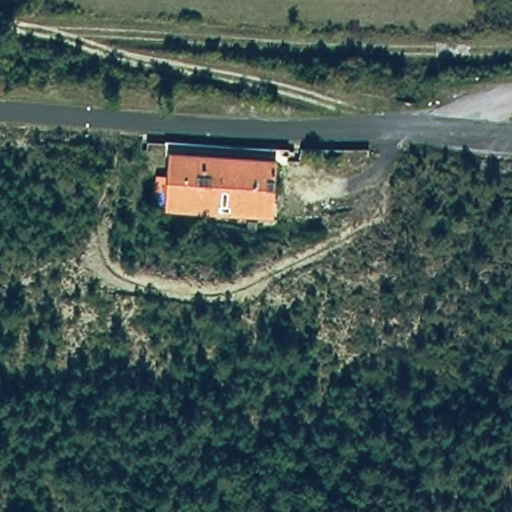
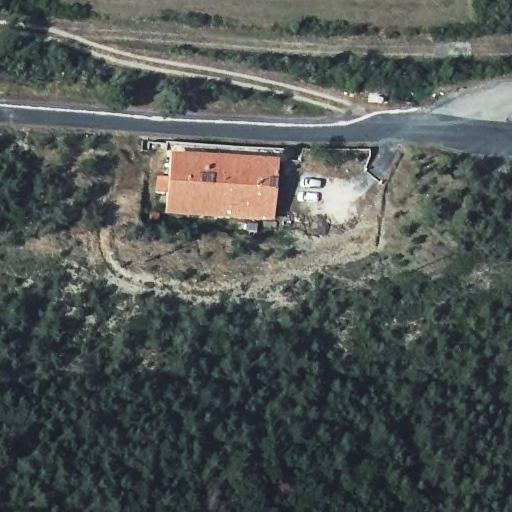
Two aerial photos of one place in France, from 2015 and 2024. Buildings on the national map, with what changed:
unchanged [(279,161),(277,220),(165,210),(172,152),(279,161)]

